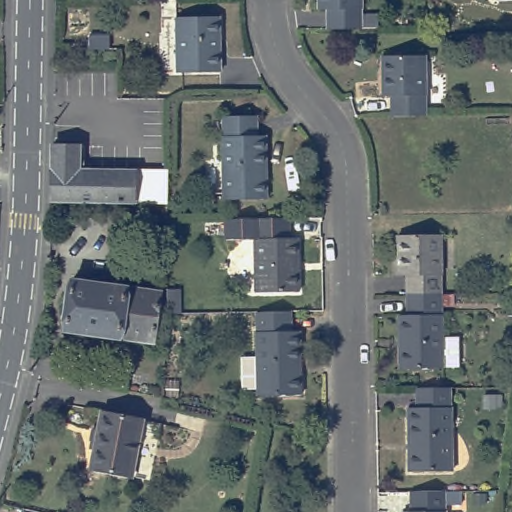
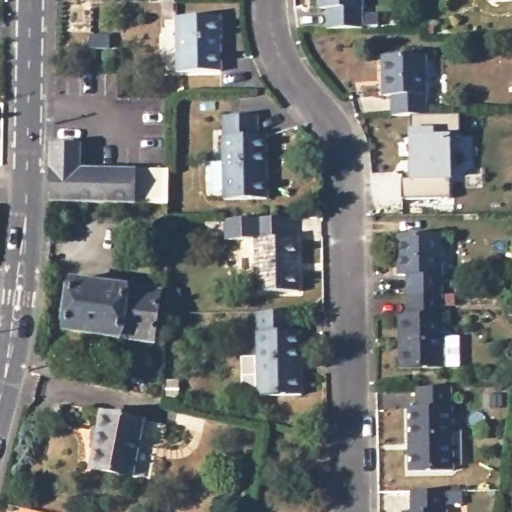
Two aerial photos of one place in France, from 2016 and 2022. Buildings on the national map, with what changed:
unchanged [(325,10),(318,10),(317,0),(362,0),(362,29),(325,30),(325,10)]
unchanged [(220,16),(221,72),(176,73),(176,17),(220,16)]
unchanged [(88,34),(107,34),(106,49),(87,49),(88,34)]
unchanged [(390,96),(380,96),(379,56),(425,56),(426,116),(389,117),(390,96)]
unchanged [(255,116),(257,135),(264,136),(266,198),(225,199),(223,117),(255,116)]
new [(459,116),(459,139),(448,139),(449,200),(399,200),(399,179),(409,179),(409,160),(414,160),(414,140),(409,140),(409,117),(459,116)]
unchanged [(51,144),(80,145),(80,167),(168,170),(167,206),(50,202),(51,144)]
unchanged [(289,218),(290,237),(298,237),(299,290),(255,291),(254,239),(224,240),(224,220),(254,219),(289,218)]
unchanged [(406,276),(397,276),(397,235),(441,235),(441,296),(405,296),(406,276)]
unchanged [(69,280),(154,292),(148,343),(62,331),(69,280)]
unchanged [(175,287),(176,312),(161,313),(161,288),(175,287)]
unchanged [(441,296),(441,336),(457,336),(457,368),(398,368),(398,315),(406,315),(405,296),(441,296)]
unchanged [(295,310),(295,331),(304,331),(305,393),(263,393),(263,389),(253,389),(248,385),(247,356),(262,355),(260,311),(295,310)]
unchanged [(34,354),(58,358),(54,375),(30,371),(34,354)]
unchanged [(451,387),(452,471),(407,471),(407,408),(416,408),(416,388),(451,387)]
unchanged [(141,420),(131,476),(91,468),(95,448),(89,447),(89,440),(88,440),(90,427),(99,428),(102,412),(141,420)]
unchanged [(461,510),(446,510),(446,512),(410,512),(411,496),(461,495),(461,510)]

